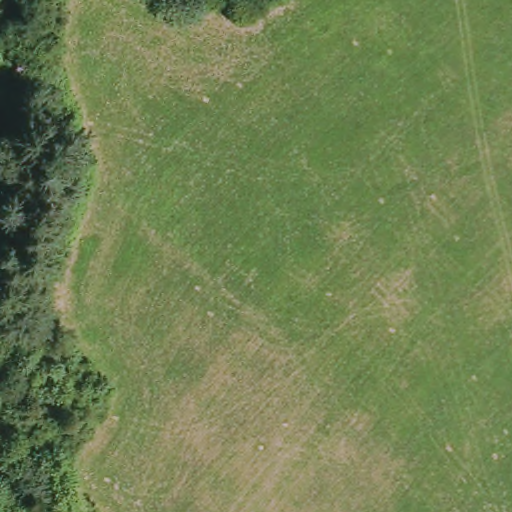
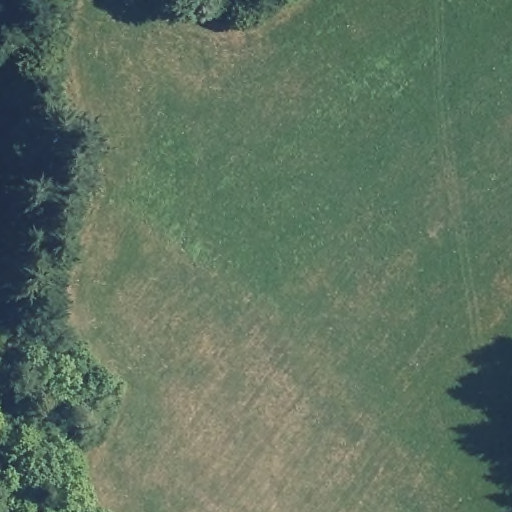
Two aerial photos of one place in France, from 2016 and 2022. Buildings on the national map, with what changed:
[]

